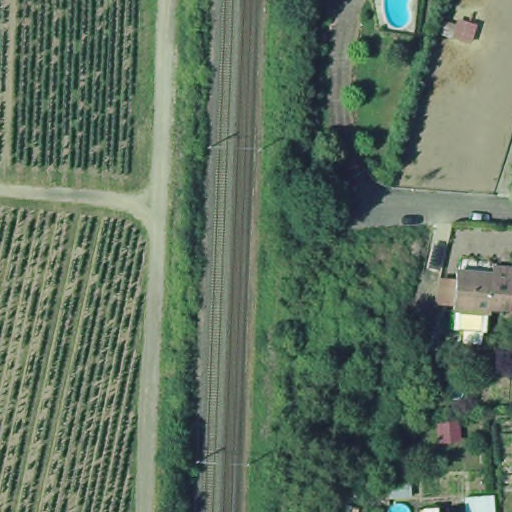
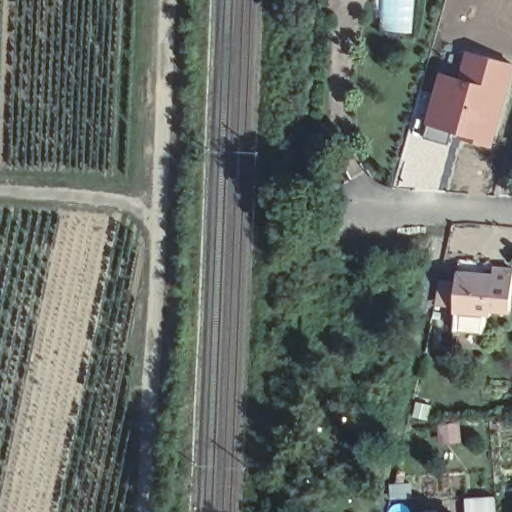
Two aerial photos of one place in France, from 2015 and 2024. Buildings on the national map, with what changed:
new [(399,32),(382,31),(385,0),(414,0),(412,24),(400,27),(399,32)]
new [(511,64),(489,147),(451,134),(447,144),(422,137),(442,77),(462,79),(467,53),(511,64)]
unchanged [(466,230),(464,247),(449,245),(451,228),(466,230)]
unchanged [(444,282),(479,285),(480,276),(500,277),(497,320),(477,318),(477,323),(442,320),(444,282)]
new [(459,423),(459,444),(438,446),(437,426),(459,423)]
unchanged [(494,512),(464,512),(464,498),(493,496),(494,512)]

